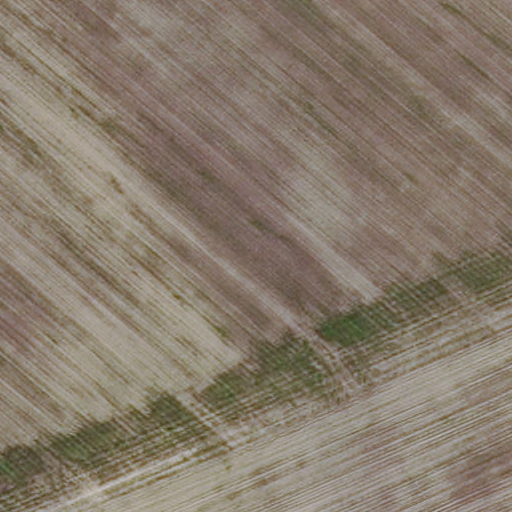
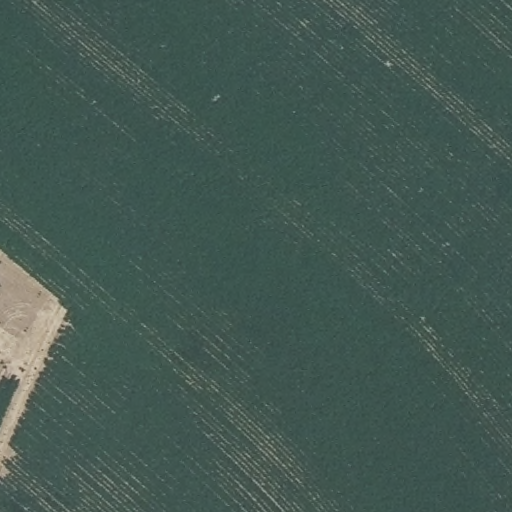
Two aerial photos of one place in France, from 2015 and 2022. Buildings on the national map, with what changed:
[]

